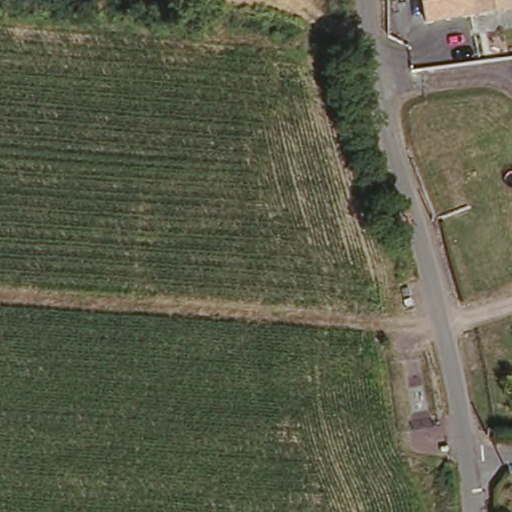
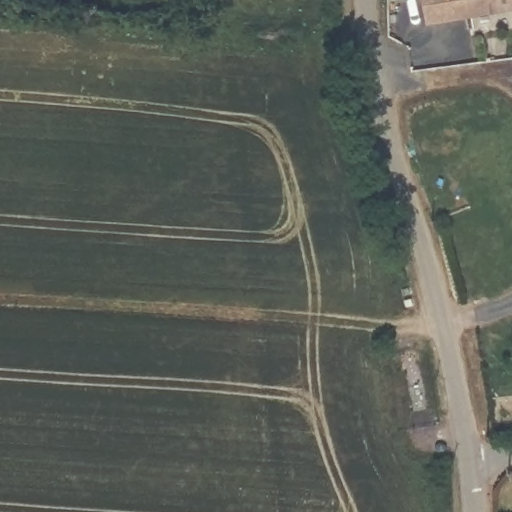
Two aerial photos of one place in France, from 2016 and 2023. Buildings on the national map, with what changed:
unchanged [(427,26),(422,0),(500,0),(502,11),(427,26)]
unchanged [(500,0),(512,0),(512,9),(502,11),(500,0)]

